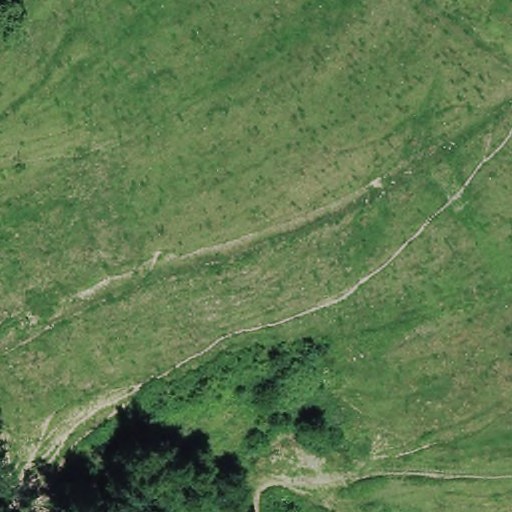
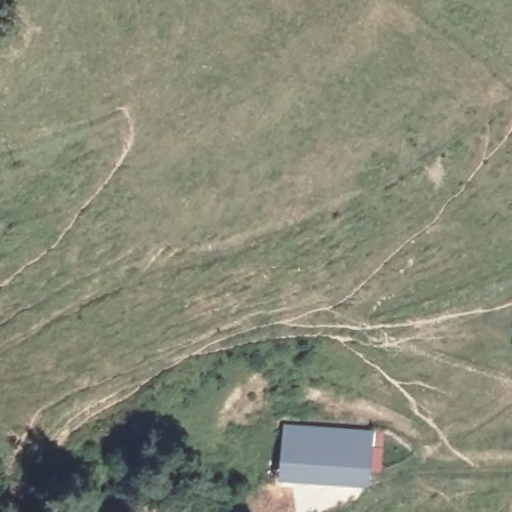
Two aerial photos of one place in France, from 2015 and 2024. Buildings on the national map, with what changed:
new [(373,431),(383,431),(378,475),(367,475),(366,493),(276,485),(282,424),(373,431)]

